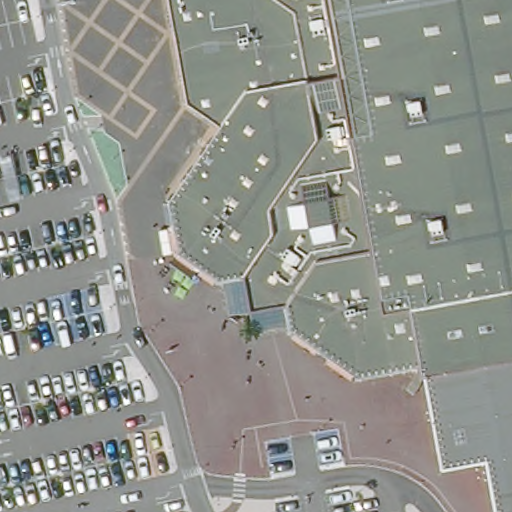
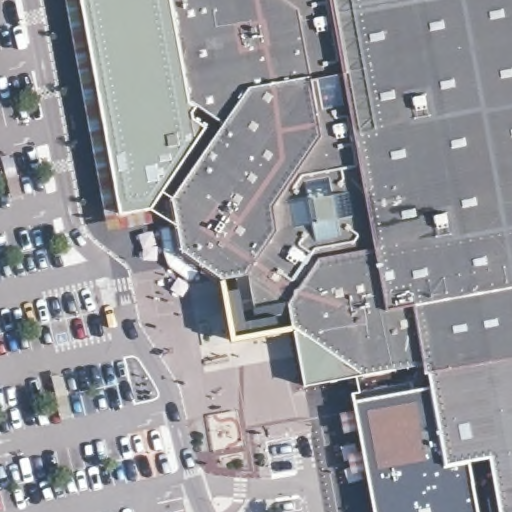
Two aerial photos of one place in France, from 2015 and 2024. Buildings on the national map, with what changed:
new [(188,102),(221,123),(222,124),(171,198),(161,191),(151,208),(119,213),(80,0),(170,0),(188,102)]
unchanged [(253,319),(252,310),(243,311),(231,313),(225,279),(222,280),(180,250),(171,198),(222,124),(188,102),(170,0),(294,0),(326,179),(393,168),(419,305),(414,306),(424,365),(362,376),(291,327),(291,325),(256,331),(253,319)]
unchanged [(512,359),(425,375),(424,365),(414,306),(419,305),(393,168),(326,179),(294,0),(512,0),(512,359)]
new [(362,376),(363,389),(411,381),(413,389),(427,386),(445,472),(470,467),(478,512),(373,512),(352,392),(358,391),(355,376),(304,386),(293,328),(359,374),(362,376)]
unchanged [(445,472),(425,375),(512,359),(512,512),(497,512),(489,463),(445,472)]

